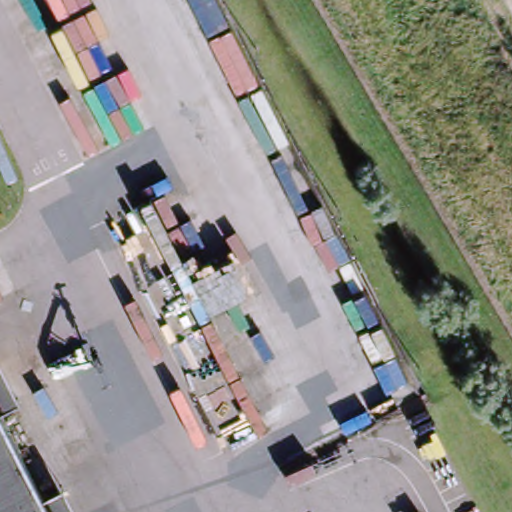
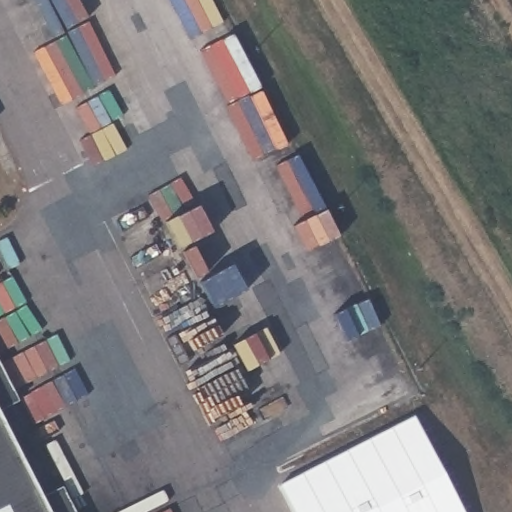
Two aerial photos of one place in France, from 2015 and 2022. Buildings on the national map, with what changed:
unchanged [(0,413),(0,362),(19,402),(0,413)]
unchanged [(50,512),(0,512),(0,413),(44,501),(50,512)]
new [(465,512),(295,512),(279,482),(418,417),(465,512)]
unchanged [(50,512),(44,501),(69,488),(81,512),(50,512)]

